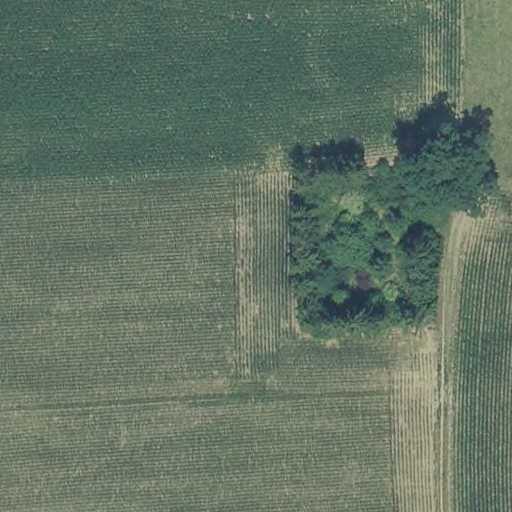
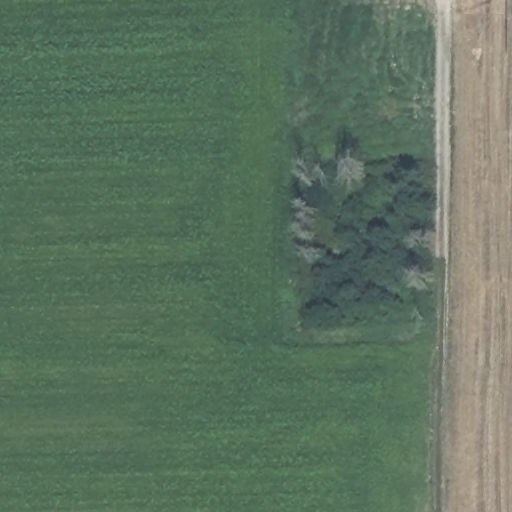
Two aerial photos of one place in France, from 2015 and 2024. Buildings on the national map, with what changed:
unchanged [(379,198),(412,187),(416,214),(378,220),(379,198)]

